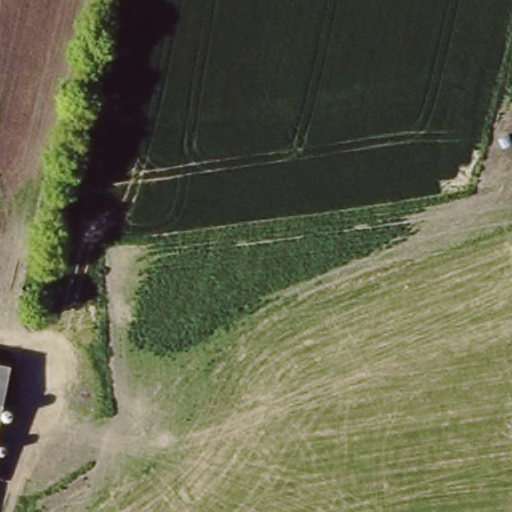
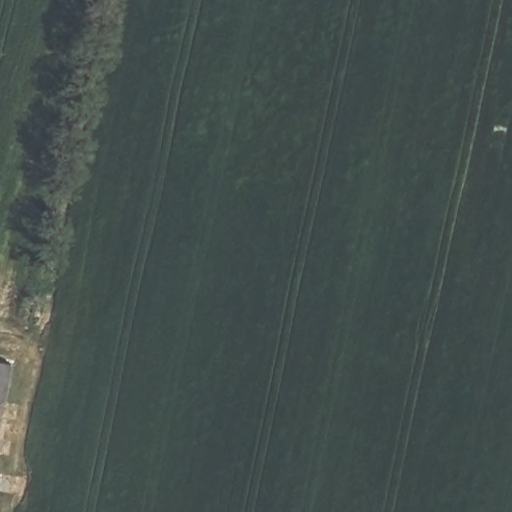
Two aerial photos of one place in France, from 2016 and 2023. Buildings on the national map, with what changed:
unchanged [(0,429),(0,365),(15,368),(0,429)]

